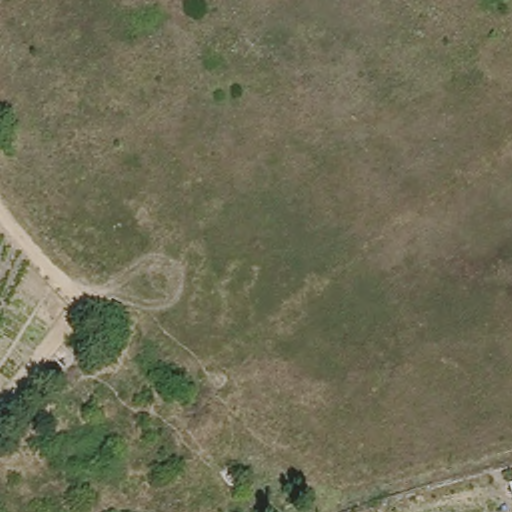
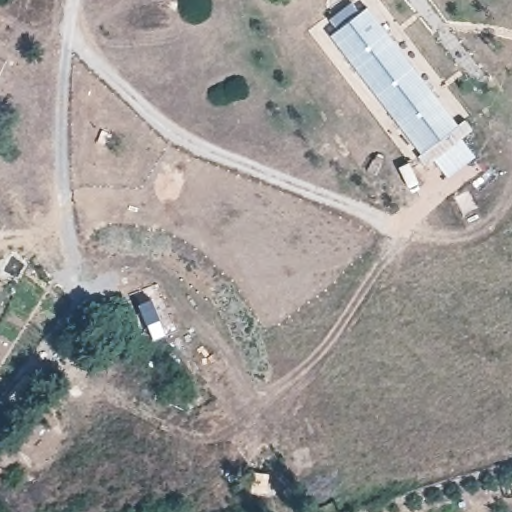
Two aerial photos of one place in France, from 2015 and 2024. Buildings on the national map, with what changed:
new [(336,29),(328,19),(351,1),(359,11),(366,6),(457,123),(463,118),(472,129),(461,137),(474,155),(446,177),(432,159),(424,165),(417,155),(420,152),(329,34),(336,29)]

